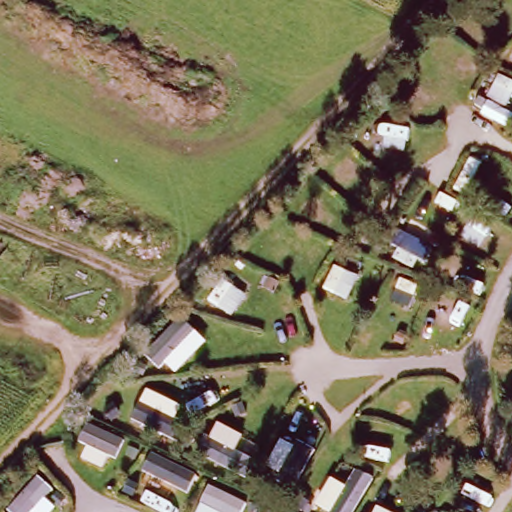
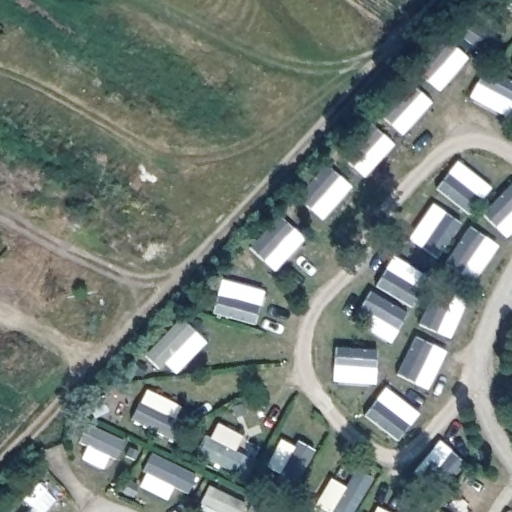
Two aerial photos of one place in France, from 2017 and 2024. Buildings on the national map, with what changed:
unchanged [(38,480),(54,493),(33,512),(6,512),(38,480)]

